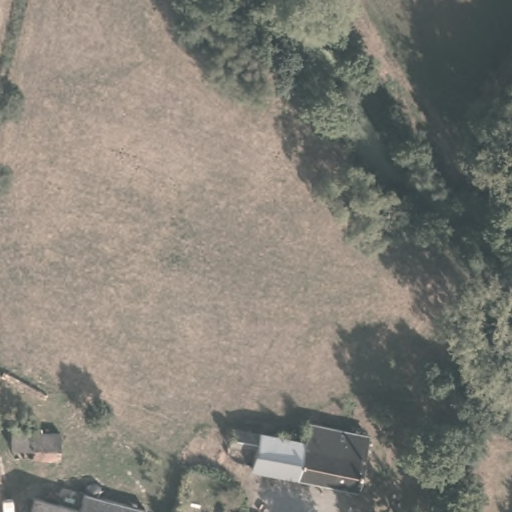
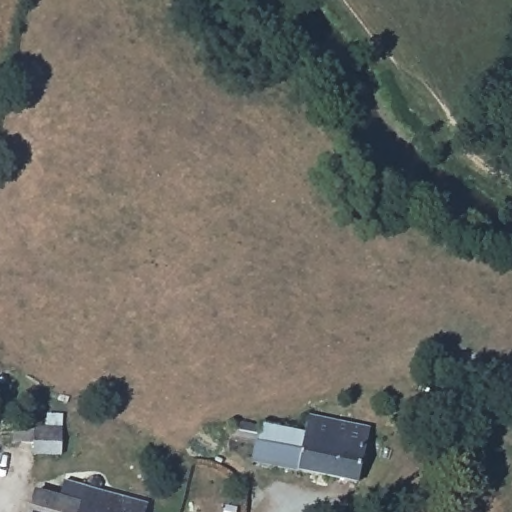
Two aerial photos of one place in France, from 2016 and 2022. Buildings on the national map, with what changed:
unchanged [(365,482),(257,461),(260,446),(235,441),(237,425),(264,430),(265,427),(311,438),(314,418),(375,431),(365,482)]
unchanged [(16,426),(67,431),(66,448),(14,443),(16,426)]
unchanged [(58,497),(61,478),(82,482),(83,480),(85,476),(88,474),(92,473),(96,473),(99,476),(101,479),(101,490),(116,494),(147,501),(144,512),(28,512),(36,492),(58,497)]

